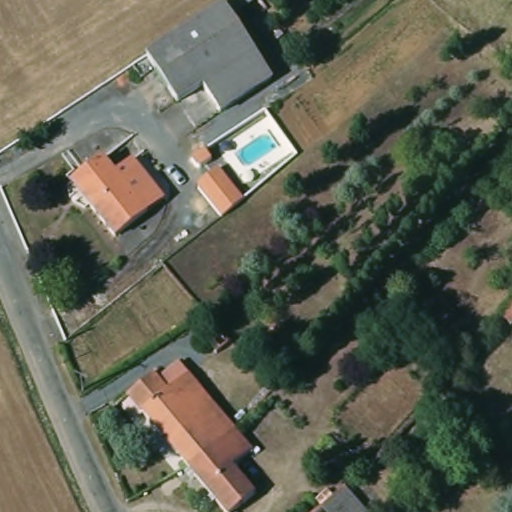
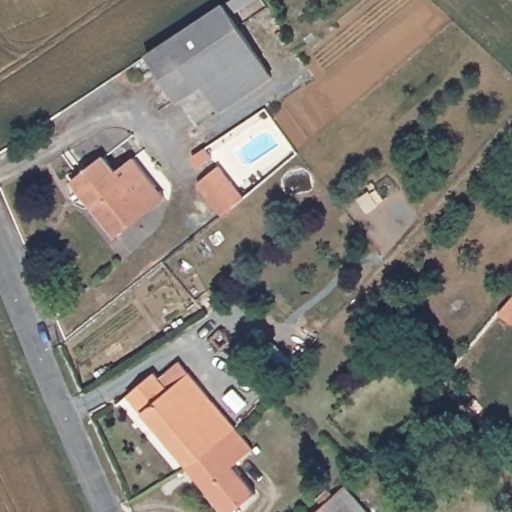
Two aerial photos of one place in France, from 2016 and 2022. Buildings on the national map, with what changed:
unchanged [(220,7),(270,76),(218,112),(201,86),(174,106),(141,61),(220,7)]
unchanged [(113,173),(129,161),(160,201),(112,240),(70,184),(101,160),(113,173)]
unchanged [(512,325),(500,314),(512,299),(512,325)]
unchanged [(225,349),(215,339),(224,331),(235,342),(225,349)]
unchanged [(125,394),(149,370),(153,375),(173,358),(229,425),(228,425),(226,428),(225,429),(185,468),(125,394)]
unchanged [(230,466),(250,492),(230,512),(221,512),(185,468),(225,429),(226,428),(228,425),(248,449),(230,466)]
unchanged [(332,491),(337,486),(361,512),(320,512),(316,508),(332,491)]
unchanged [(313,512),(316,508),(320,512),(313,512)]

